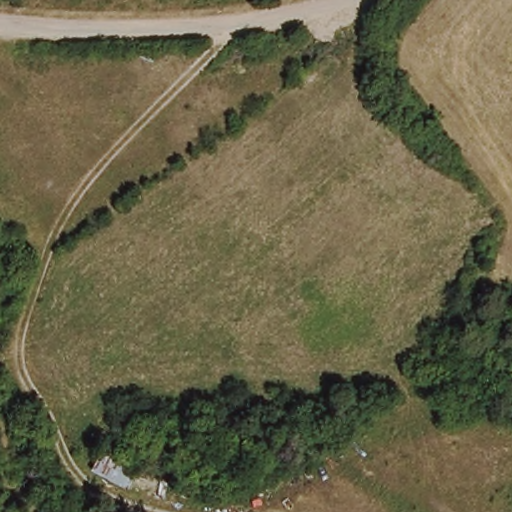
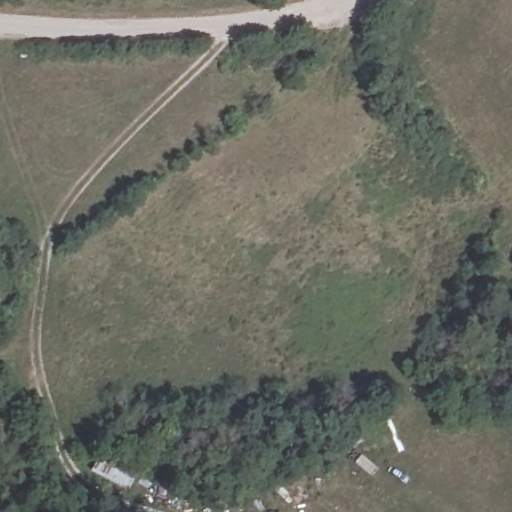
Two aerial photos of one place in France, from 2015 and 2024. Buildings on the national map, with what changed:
unchanged [(91,471),(103,447),(141,468),(128,491),(91,471)]

